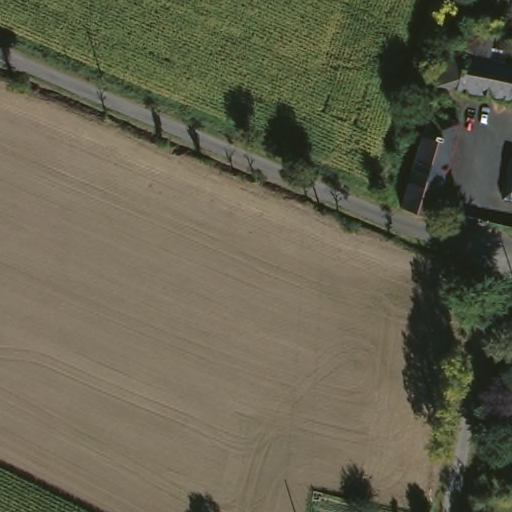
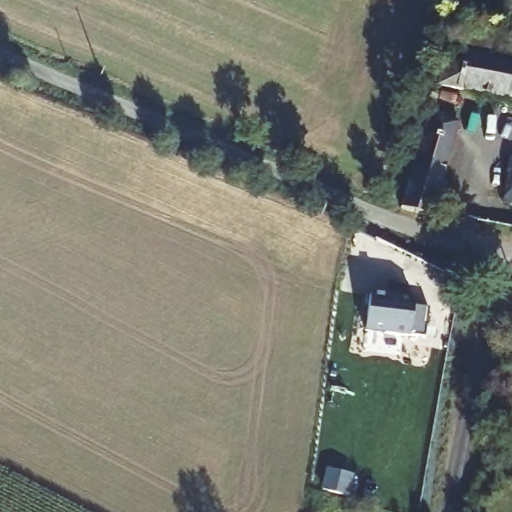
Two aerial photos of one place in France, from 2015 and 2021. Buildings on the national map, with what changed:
unchanged [(512,51),(512,98),(454,85),(462,51),(478,55),(484,29),(508,35),(504,49),(512,51)]
unchanged [(420,207),(397,202),(420,114),(444,120),(420,207)]
unchanged [(423,216),(419,215),(420,207),(444,120),(475,129),(451,224),(423,216)]
new [(366,294),(410,300),(409,306),(425,308),(421,338),(361,330),(366,294)]

